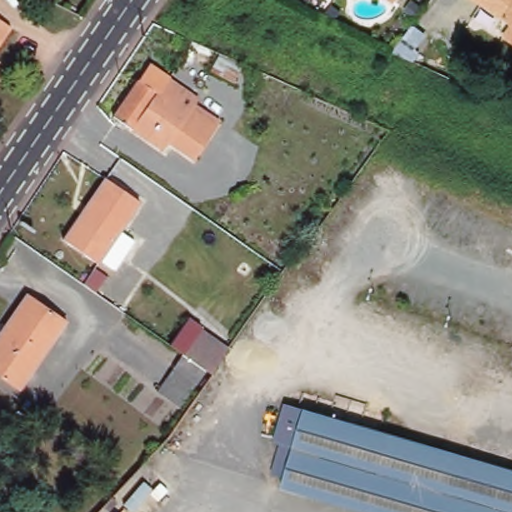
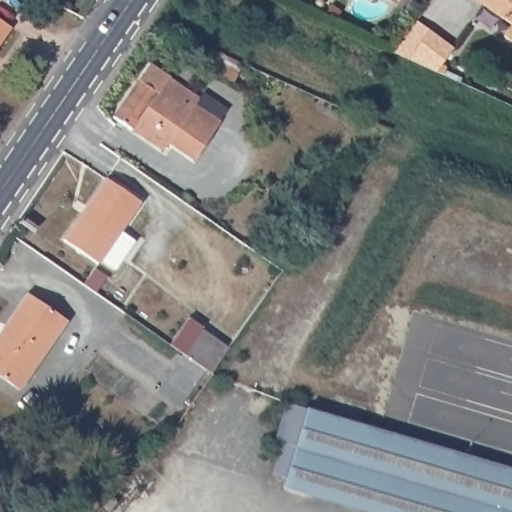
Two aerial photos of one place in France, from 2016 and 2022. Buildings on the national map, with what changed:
unchanged [(391,3),(387,0),(393,0),(391,3)]
unchanged [(511,24),(476,0),(512,0),(512,43),(501,36),(511,24)]
new [(436,73),(408,60),(393,54),(416,23),(429,33),(452,51),(436,73)]
unchanged [(5,30),(0,37),(0,27),(5,30)]
unchanged [(240,70),(233,84),(210,73),(217,59),(240,70)]
unchanged [(140,83),(150,67),(198,100),(195,106),(219,124),(193,163),(167,146),(162,153),(112,119),(137,82),(140,83)]
unchanged [(110,273),(96,263),(94,266),(59,242),(76,217),(81,208),(100,180),(136,204),(115,234),(130,244),(110,273)]
unchanged [(21,297),(61,324),(14,392),(0,382),(0,327),(21,297)]
unchanged [(165,384),(183,357),(170,348),(188,320),(202,329),(200,331),(227,350),(210,376),(206,373),(188,399),(165,384)]
unchanged [(267,477),(275,446),(270,444),(281,406),(466,460),(512,473),(512,512),(361,512),(279,488),(280,480),(267,477)]

